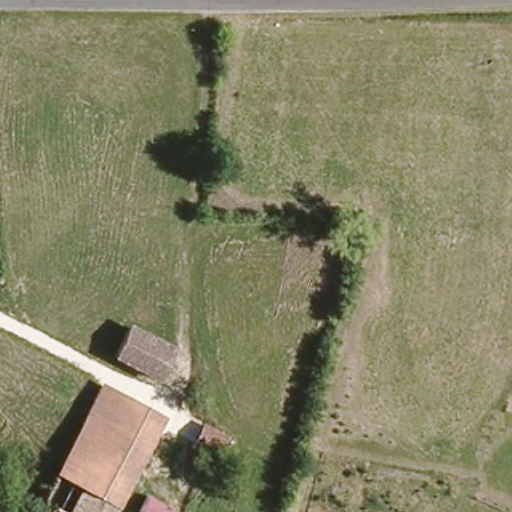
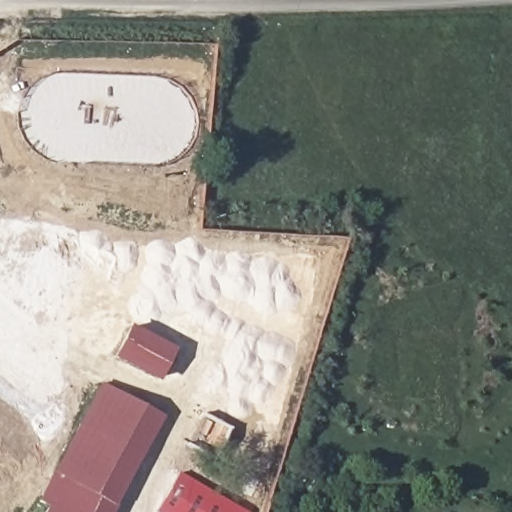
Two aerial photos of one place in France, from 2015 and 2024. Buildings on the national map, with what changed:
unchanged [(116,354),(131,325),(171,345),(156,374),(116,354)]
unchanged [(50,512),(50,510),(43,505),(106,388),(167,419),(116,512),(50,512)]
unchanged [(221,444),(212,464),(188,453),(201,433),(221,444)]
new [(247,512),(155,512),(178,472),(247,512)]

